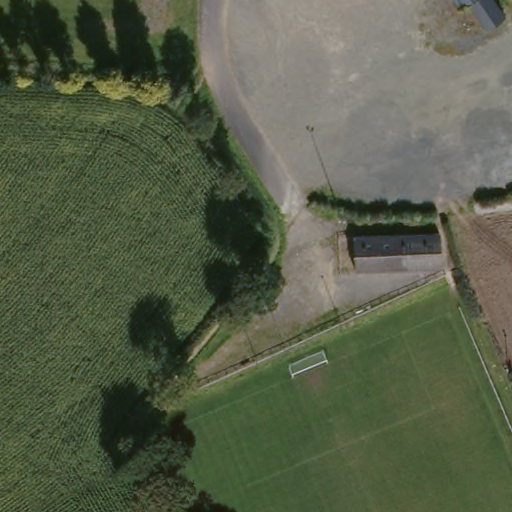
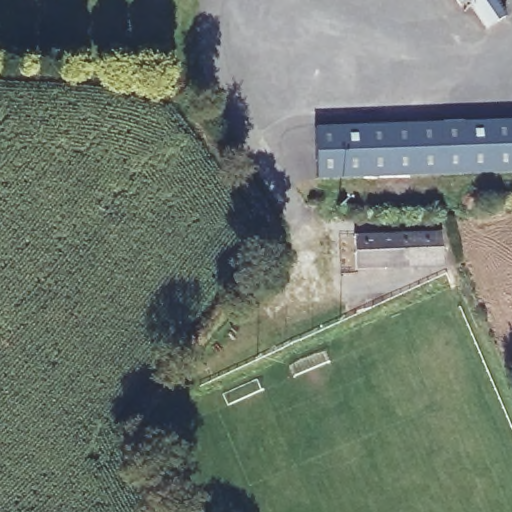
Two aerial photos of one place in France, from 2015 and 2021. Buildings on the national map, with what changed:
unchanged [(463,0),(495,0),(497,4),(476,19),(463,0)]
new [(512,120),(512,172),(316,179),(315,127),(512,120)]
unchanged [(440,265),(353,265),(353,235),(440,235),(440,265)]

